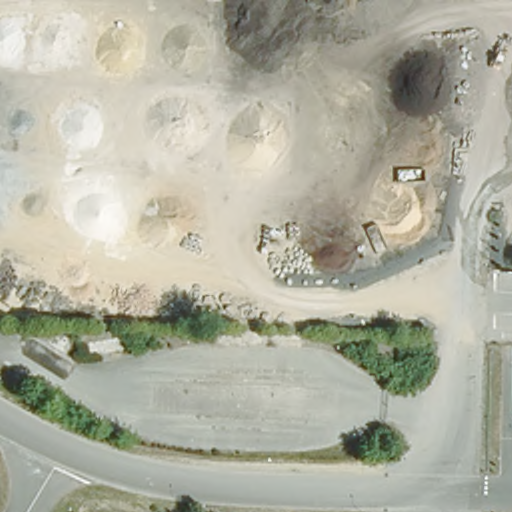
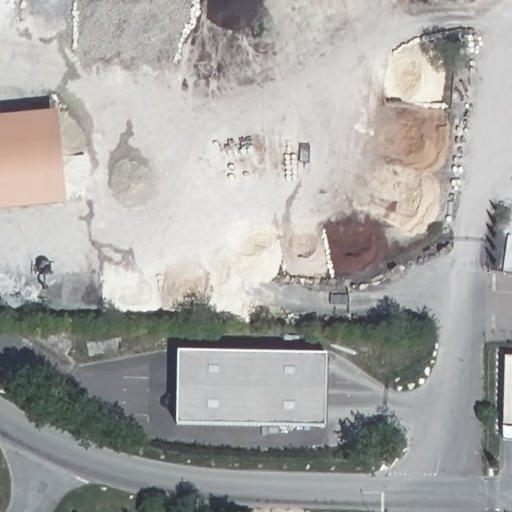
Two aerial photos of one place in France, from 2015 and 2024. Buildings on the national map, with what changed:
new [(0,116),(57,110),(66,203),(0,209),(0,116)]
new [(325,427),(176,424),(178,351),(327,353),(325,427)]

